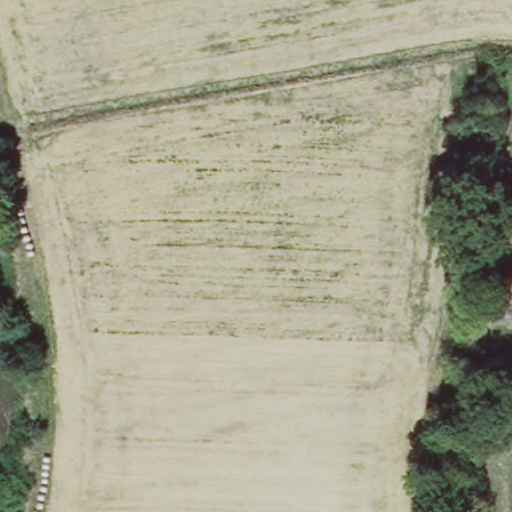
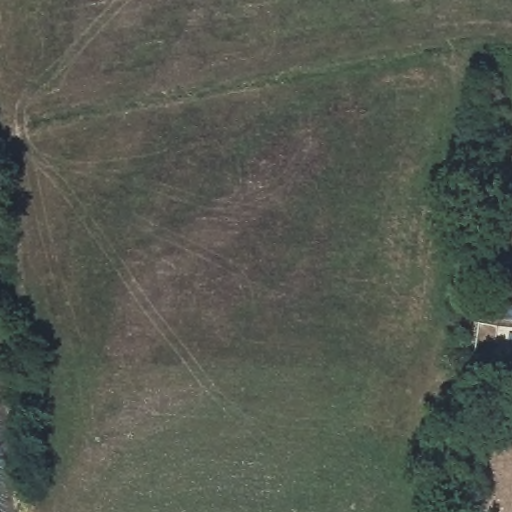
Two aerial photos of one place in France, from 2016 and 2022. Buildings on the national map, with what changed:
unchanged [(512,261),(512,299),(497,297),(497,261),(512,261)]

